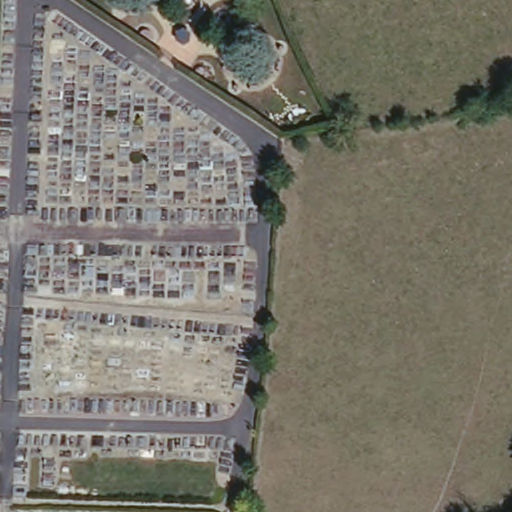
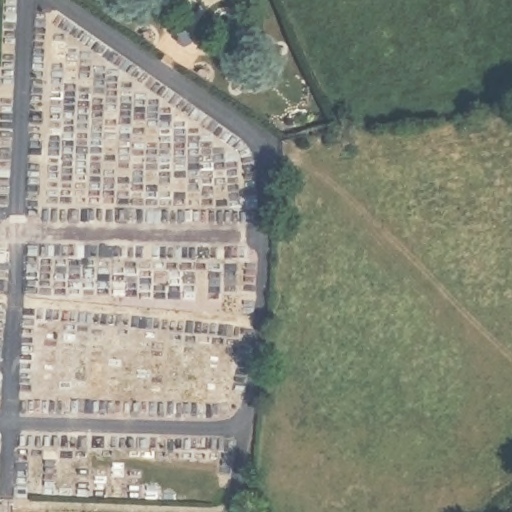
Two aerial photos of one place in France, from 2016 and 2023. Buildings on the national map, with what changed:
[]

